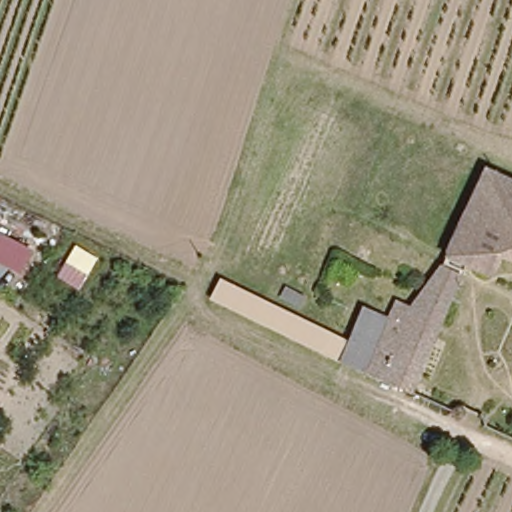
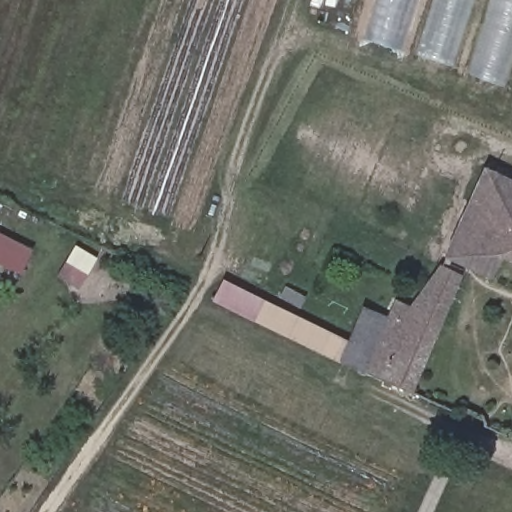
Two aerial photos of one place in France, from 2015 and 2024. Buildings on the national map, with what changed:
demolished [(319,14),(325,0),(331,0),(406,33),(398,51),(319,14)]
new [(512,0),(512,56),(503,86),(362,39),(374,0),(512,0)]
unchanged [(504,258),(493,279),(443,255),(488,161),(502,168),(499,173),(512,179),(512,261),(504,258)]
new [(20,273),(0,263),(0,234),(31,250),(20,273)]
new [(98,257),(80,289),(59,276),(75,246),(98,257)]
unchanged [(416,394),(369,372),(389,324),(390,319),(401,323),(404,316),(413,318),(439,262),(460,271),(416,394)]
unchanged [(284,280),(304,289),(299,297),(281,288),(284,280)]
unchanged [(222,301),(229,286),(267,303),(352,343),(345,360),(260,319),(222,301)]
unchanged [(356,333),(363,314),(389,324),(369,372),(345,360),(352,343),(356,333)]

